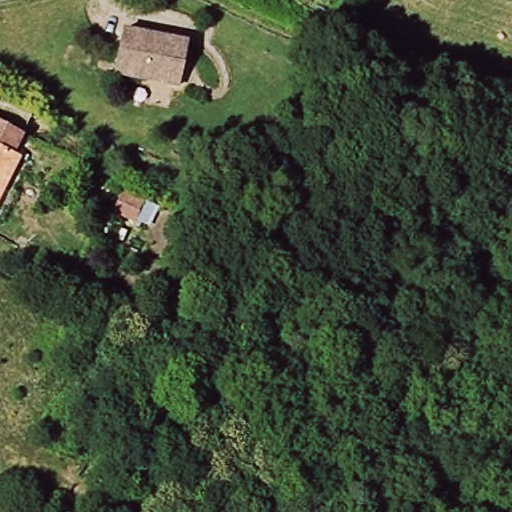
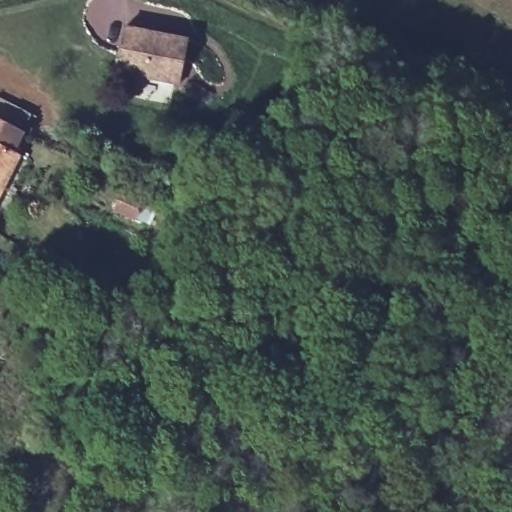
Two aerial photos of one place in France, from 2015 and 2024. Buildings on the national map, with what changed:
unchanged [(182,89),(116,73),(126,29),(191,45),(182,89)]
unchanged [(16,151),(22,156),(0,201),(0,119),(24,130),(16,151)]

